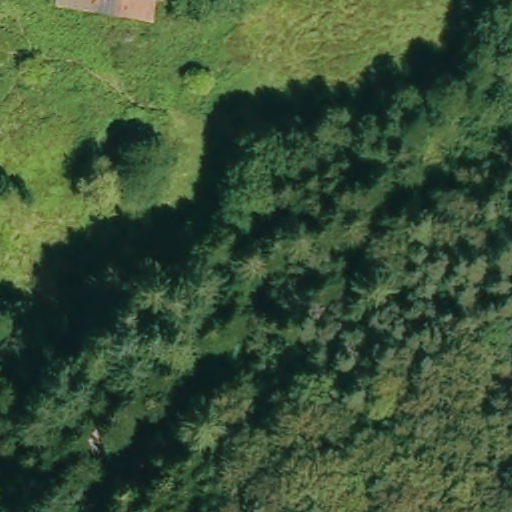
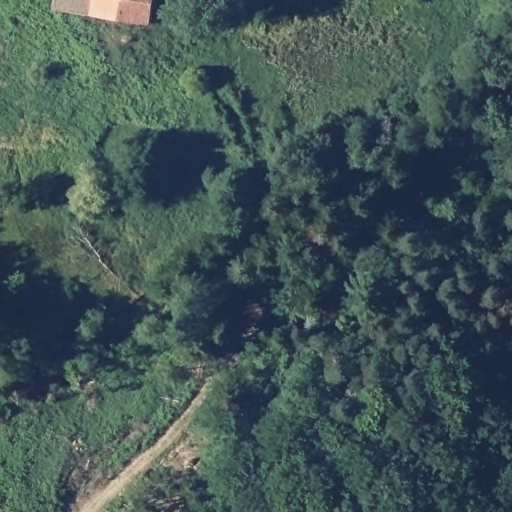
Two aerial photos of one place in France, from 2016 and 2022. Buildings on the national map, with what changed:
unchanged [(157,0),(144,31),(48,0),(157,0)]

